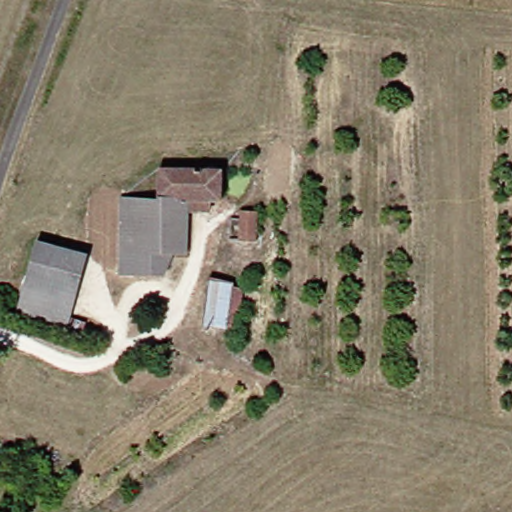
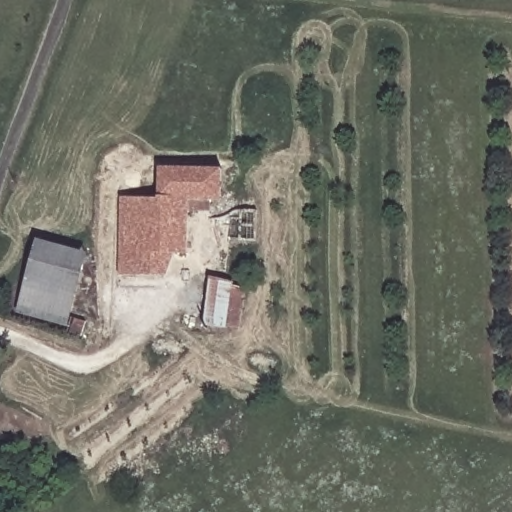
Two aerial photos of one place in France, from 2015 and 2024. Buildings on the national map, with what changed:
unchanged [(116,275),(118,255),(121,197),(153,199),(157,165),(223,174),(221,206),(188,203),(181,261),(168,261),(165,279),(116,275)]
unchanged [(256,252),(238,252),(238,215),(258,215),(256,252)]
unchanged [(96,255),(84,302),(79,325),(26,312),(34,284),(45,242),(96,255)]
unchanged [(208,288),(240,292),(233,330),(201,327),(208,288)]

